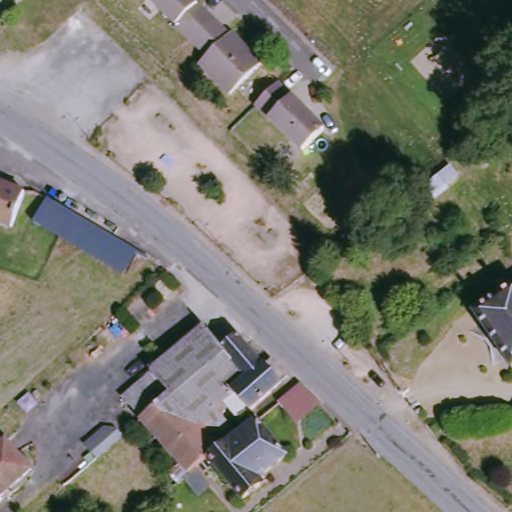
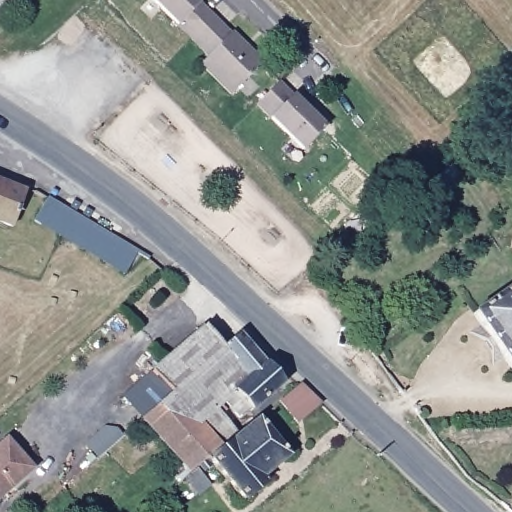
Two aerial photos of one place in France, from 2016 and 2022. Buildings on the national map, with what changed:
unchanged [(206,64),(213,56),(157,0),(200,0),(235,35),(237,33),(266,62),(236,93),(206,64)]
unchanged [(322,127),(302,149),(256,104),(277,82),(322,127)]
unchanged [(456,172),(442,182),(436,173),(449,163),(456,172)]
unchanged [(29,187),(17,222),(0,215),(0,177),(12,181),(29,187)]
unchanged [(80,217),(137,250),(124,274),(37,225),(51,201),(80,217)]
unchanged [(511,372),(473,317),(512,289),(512,371),(511,372)]
unchanged [(169,393),(150,372),(202,325),(222,347),(221,348),(169,393)]
unchanged [(238,337),(264,366),(270,360),(279,368),(272,375),(279,383),(251,409),(249,407),(240,416),(224,400),(247,378),(222,350),(238,337)]
unchanged [(247,378),(224,400),(215,408),(227,421),(210,437),(220,448),(190,472),(142,421),(171,395),(169,393),(221,348),(222,350),(247,378)]
unchanged [(169,393),(140,418),(121,398),(150,372),(169,393)]
unchanged [(320,402),(297,421),(281,401),(301,385),(320,402)]
unchanged [(287,455),(258,480),(262,484),(242,500),(210,459),(257,420),(287,455)]
unchanged [(0,502),(0,447),(9,438),(36,470),(0,502)]

